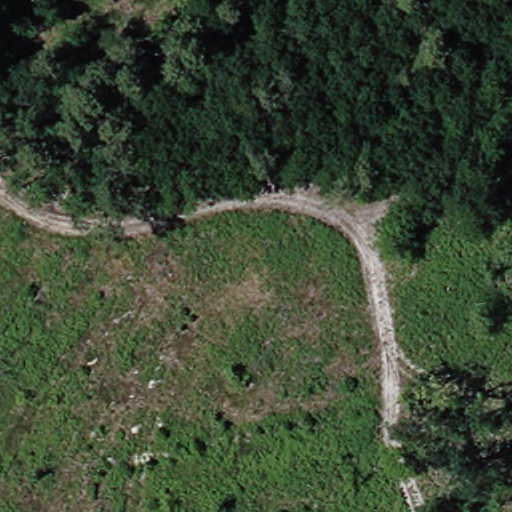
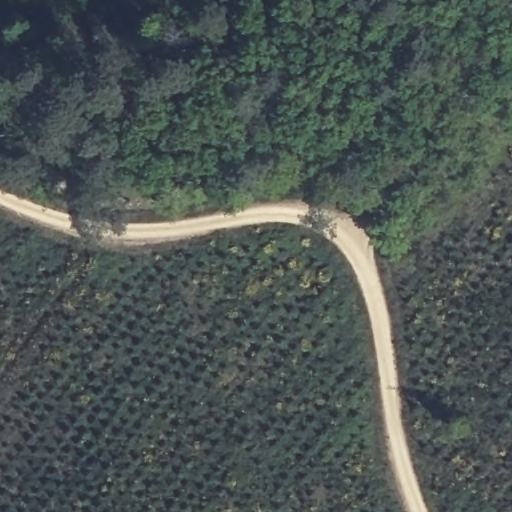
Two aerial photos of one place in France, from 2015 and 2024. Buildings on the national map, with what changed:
unchanged [(306,153),(290,146),(301,121),(321,132),(306,153)]

